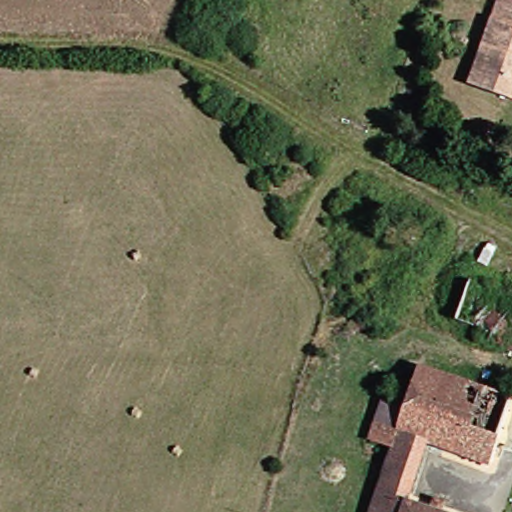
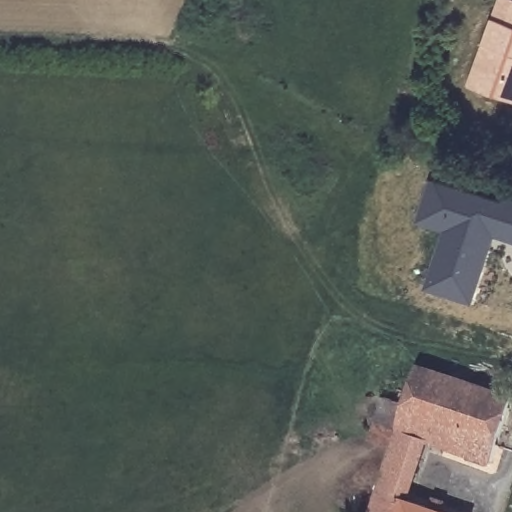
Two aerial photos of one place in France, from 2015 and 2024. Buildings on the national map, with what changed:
unchanged [(497,16),(512,21),(512,95),(473,81),(497,16)]
new [(418,220),(432,178),(503,200),(506,195),(512,197),(512,241),(495,235),(472,303),(427,287),(445,230),(418,220)]
unchanged [(392,381),(417,388),(427,364),(512,395),(512,415),(505,436),(446,417),(436,443),(403,433),(398,448),(372,440),(387,397),(392,381)]
unchanged [(505,436),(496,462),(436,443),(446,417),(505,436)]
unchanged [(398,448),(403,433),(436,443),(418,502),(386,492),(398,448)]
unchanged [(386,492),(418,502),(449,512),(380,512),(386,492)]

